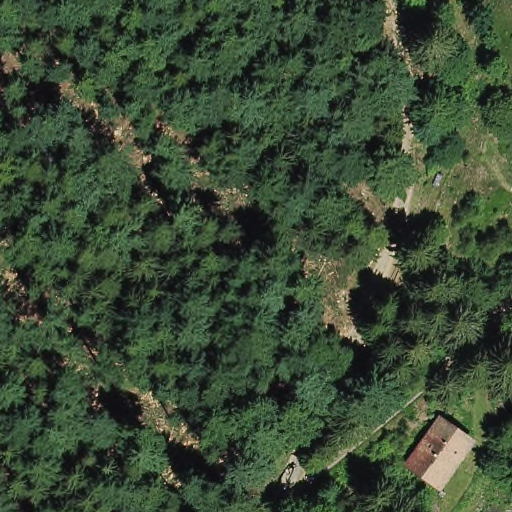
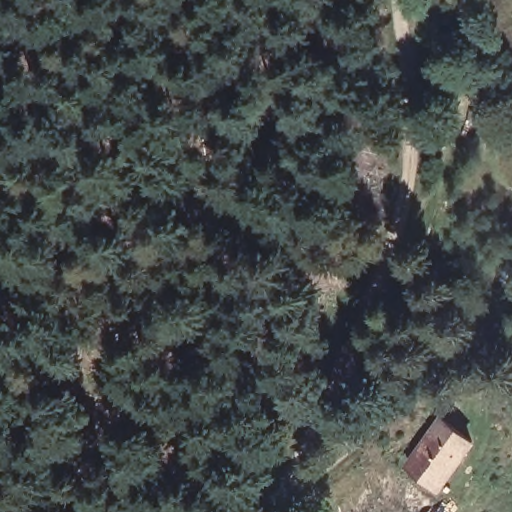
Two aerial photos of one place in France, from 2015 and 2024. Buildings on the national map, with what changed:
unchanged [(437,488),(408,466),(441,421),(470,443),(437,488)]

